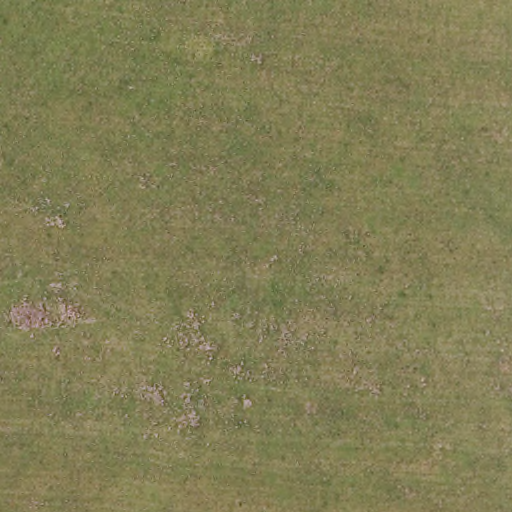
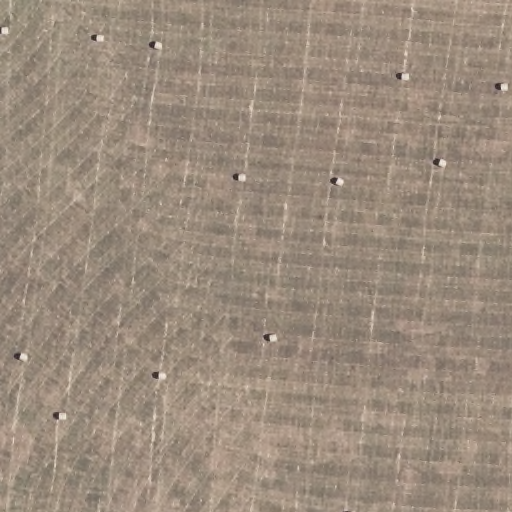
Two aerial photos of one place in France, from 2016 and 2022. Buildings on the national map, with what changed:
[]

